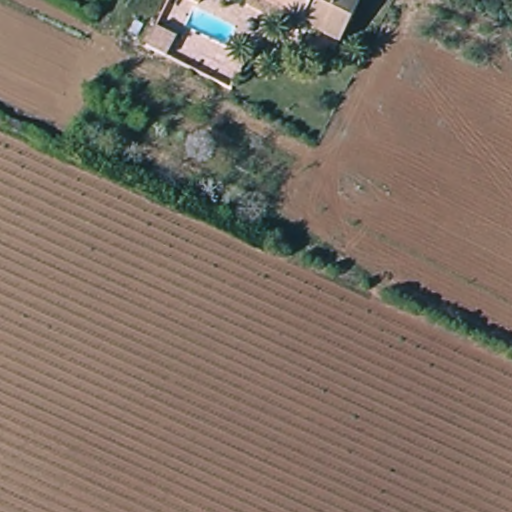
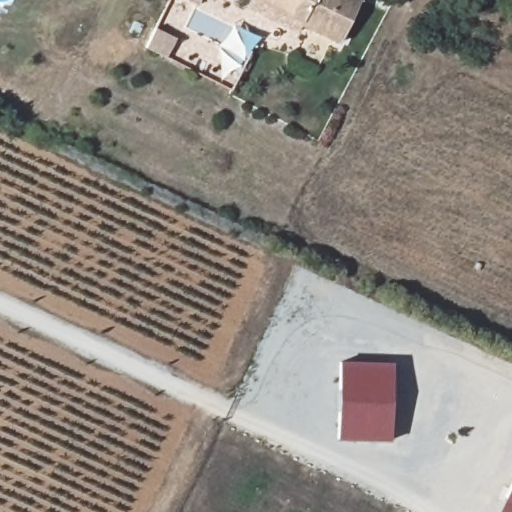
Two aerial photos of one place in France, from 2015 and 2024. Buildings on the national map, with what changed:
unchanged [(179,0),(208,0),(203,12),(179,0)]
unchanged [(303,22),(296,31),(246,7),(249,0),(363,0),(344,43),(303,22)]
new [(393,362),(390,441),(337,440),(340,361),(393,362)]
new [(512,480),(512,512),(497,512),(512,480)]

